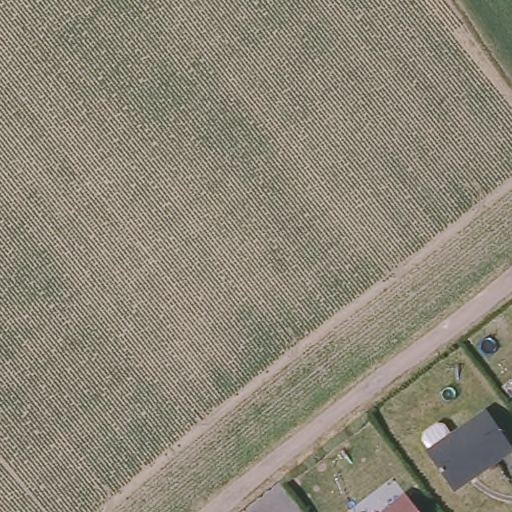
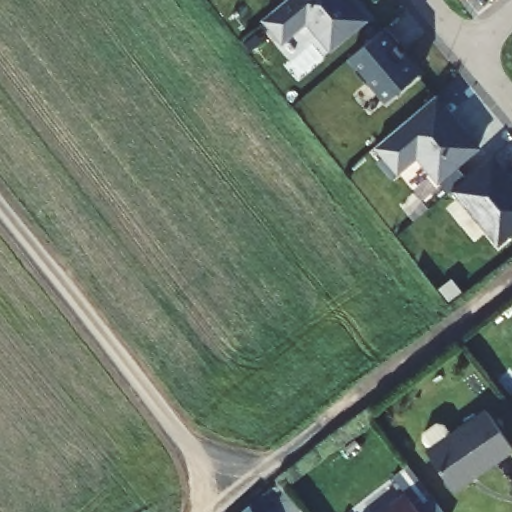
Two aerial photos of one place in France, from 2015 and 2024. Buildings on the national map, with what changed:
new [(351,6),(352,4),(367,20),(330,51),(305,24),(282,44),(262,20),(286,0),(347,0),(346,0),(351,6)]
new [(399,44),(396,45),(404,55),(400,58),(416,78),(382,106),(365,85),(362,88),(350,74),(353,70),(345,61),(385,28),(399,44)]
new [(450,114),(448,116),(464,135),(467,134),(479,148),(438,182),(417,157),(398,173),(375,146),(435,96),(450,114)]
new [(512,180),(512,235),(499,246),(452,190),(492,156),(512,180)]
unchanged [(487,411),(512,448),(512,451),(453,492),(427,453),(487,411)]
unchanged [(389,508),(387,506),(404,493),(418,512),(383,512),(389,508)]

